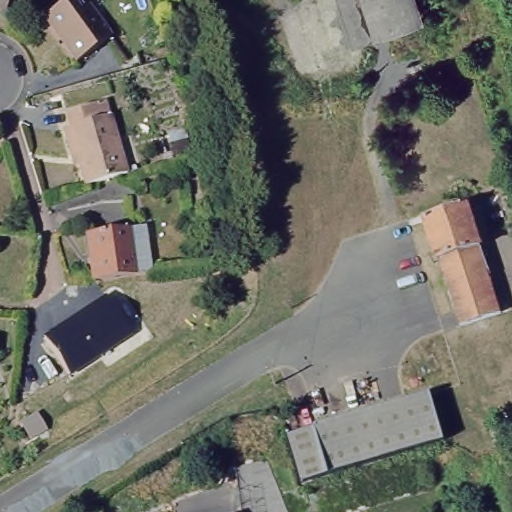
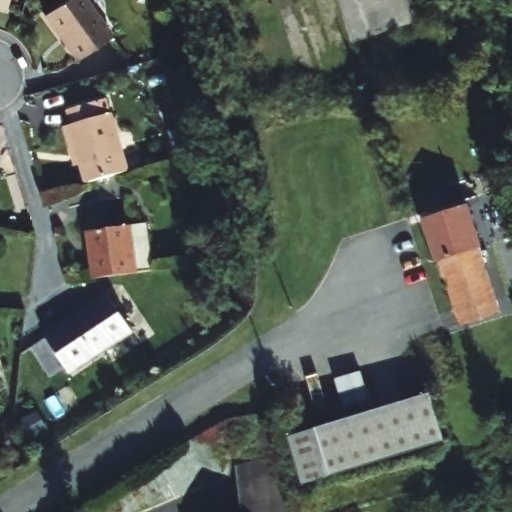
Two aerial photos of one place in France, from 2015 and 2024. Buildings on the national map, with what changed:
unchanged [(0,8),(0,0),(9,0),(7,9),(0,8)]
unchanged [(77,60),(45,15),(66,0),(85,0),(110,36),(77,60)]
unchanged [(408,0),(415,19),(362,36),(351,0),(408,0)]
unchanged [(87,183),(79,155),(74,157),(65,126),(72,124),(68,110),(107,98),(128,171),(87,183)]
unchanged [(184,127),(190,150),(177,154),(174,155),(168,132),(170,131),(184,127)]
unchanged [(481,247),(480,247),(501,312),(460,326),(439,260),(437,261),(425,221),(461,208),(460,207),(462,206),(462,208),(468,206),(481,247)]
unchanged [(126,273),(85,279),(78,231),(120,225),(137,223),(138,238),(143,271),(126,273)]
unchanged [(105,292),(135,332),(70,375),(45,334),(105,292)]
unchanged [(289,433),(434,390),(448,443),(305,484),(289,433)]
unchanged [(512,414),(512,429),(507,415),(512,414)]

